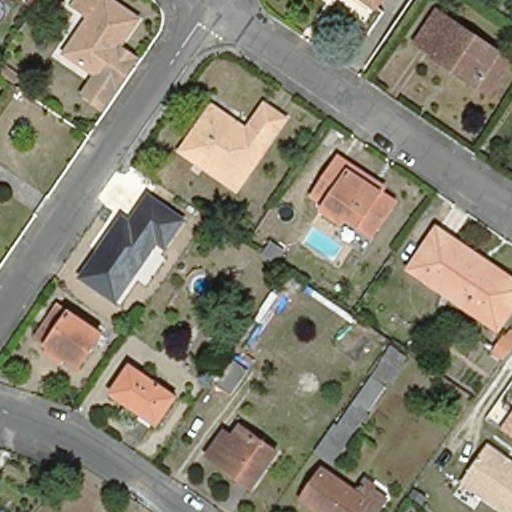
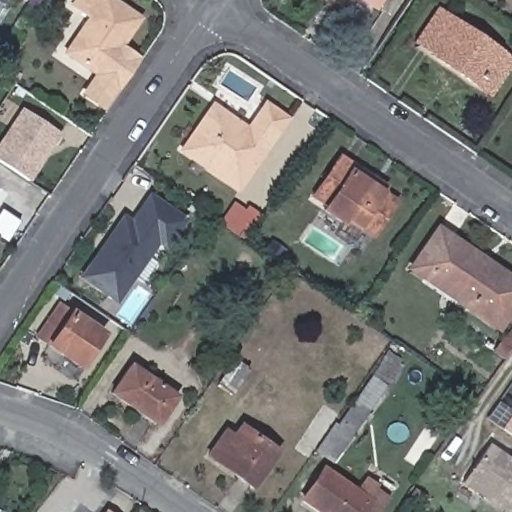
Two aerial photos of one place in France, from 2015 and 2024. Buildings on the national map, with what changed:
unchanged [(117,53),(133,65),(106,106),(89,95),(100,77),(67,55),(91,19),(73,7),(78,0),(111,0),(139,19),(117,53)]
unchanged [(362,0),(373,0),(369,5),(362,0)]
unchanged [(489,95),(474,84),(462,75),(447,65),(413,41),(435,10),(497,53),(512,64),(489,95)]
unchanged [(242,130),(260,104),(281,118),(233,190),(176,151),(206,106),(242,130)]
new [(62,134),(30,181),(0,161),(0,143),(23,109),(62,134)]
unchanged [(373,235),(347,217),(344,222),(325,210),(329,204),(315,195),(341,157),(373,179),(386,187),(382,193),(396,202),(373,235)]
unchanged [(167,249),(157,242),(115,303),(77,275),(123,209),(134,216),(150,194),(187,219),(167,249)]
unchanged [(476,256),(474,260),(512,286),(512,304),(494,331),(447,298),(451,292),(410,263),(434,228),(476,256)]
unchanged [(103,334),(80,367),(39,339),(61,305),(103,334)]
unchanged [(332,461),(311,443),(387,341),(410,363),(332,461)]
unchanged [(489,356),(497,346),(507,353),(500,363),(489,356)]
unchanged [(250,370),(231,396),(218,386),(236,360),(250,370)]
unchanged [(177,396),(157,425),(112,393),(131,365),(177,396)]
unchanged [(501,428),(512,413),(512,435),(501,428)]
unchanged [(272,453),(247,487),(202,455),(214,439),(219,431),(227,436),(235,426),(272,453)]
unchanged [(461,483),(490,443),(512,459),(512,512),(502,512),(461,483)]
unchanged [(306,500),(323,473),(378,511),(377,512),(324,512),(306,500)]
new [(107,509),(111,512),(105,512),(107,509)]

